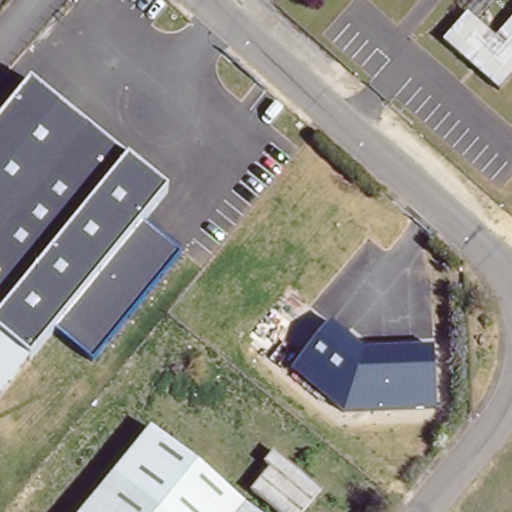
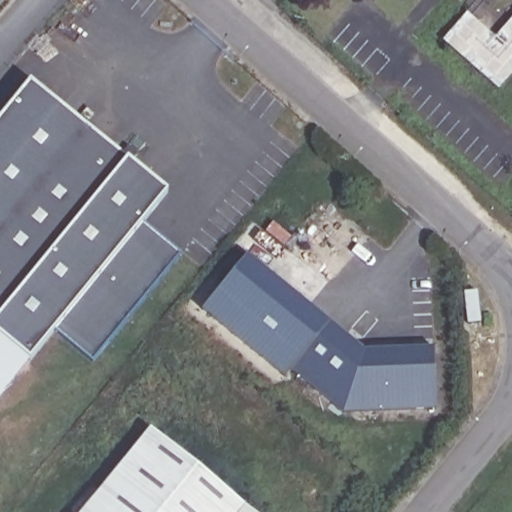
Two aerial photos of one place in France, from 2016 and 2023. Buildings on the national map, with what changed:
unchanged [(467,14),(495,37),(512,18),(512,74),(500,89),(445,40),(467,14)]
unchanged [(167,192),(141,221),(181,253),(92,362),(53,331),(0,397),(0,116),(30,80),(167,192)]
new [(290,370),(286,377),(202,310),(247,255),(331,321),(290,370)]
unchanged [(437,410),(345,415),(290,370),(331,321),(364,349),(433,346),(437,410)]
unchanged [(246,507),(252,512),(87,512),(153,431),(246,507)]
demolished [(270,475),(265,472),(278,455),(322,489),(305,512),(252,512),(246,507),(270,475)]

